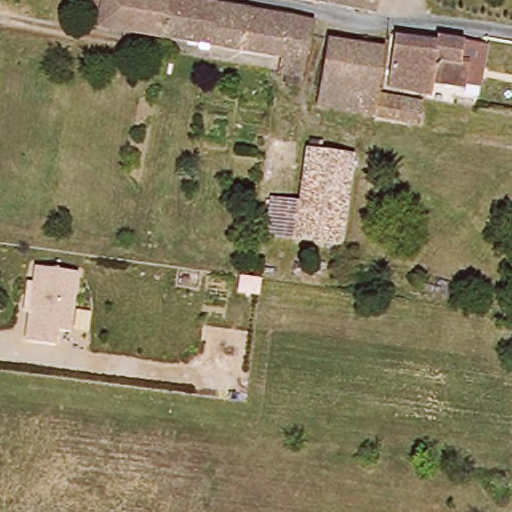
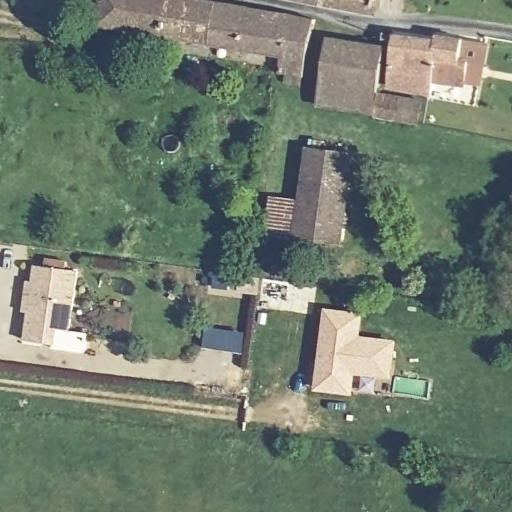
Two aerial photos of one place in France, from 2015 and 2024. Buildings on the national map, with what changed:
unchanged [(162,0),(156,36),(90,25),(93,0),(162,0)]
unchanged [(205,43),(156,36),(162,0),(202,0),(212,1),(205,43)]
unchanged [(325,0),(373,0),(371,9),(325,0)]
unchanged [(280,80),(282,71),(273,70),(276,54),(205,43),(212,1),(307,18),(297,73),(296,83),(280,80)]
unchanged [(487,45),(480,86),(465,84),(464,88),(431,84),(428,96),(386,88),(395,38),(432,42),(435,38),(462,41),(487,45)]
unchanged [(376,96),(417,103),(413,126),(355,116),(316,108),(327,41),(382,51),(376,96)]
unchanged [(296,234),(301,197),(307,147),(350,152),(338,240),(296,234)]
unchanged [(296,234),(265,231),(270,193),(281,195),(301,197),(296,234)]
unchanged [(34,264),(79,269),(72,332),(59,330),(57,345),(24,340),(34,264)]
new [(262,281),(258,295),(238,291),(239,287),(230,285),(229,291),(214,287),(217,271),(262,281)]
new [(323,307),(365,313),(362,335),(397,339),(392,381),(357,376),(353,397),(313,391),(323,307)]
new [(205,326),(246,332),(242,354),(202,347),(205,326)]

